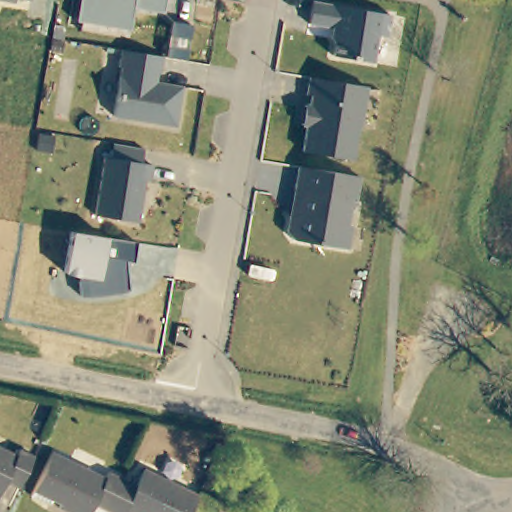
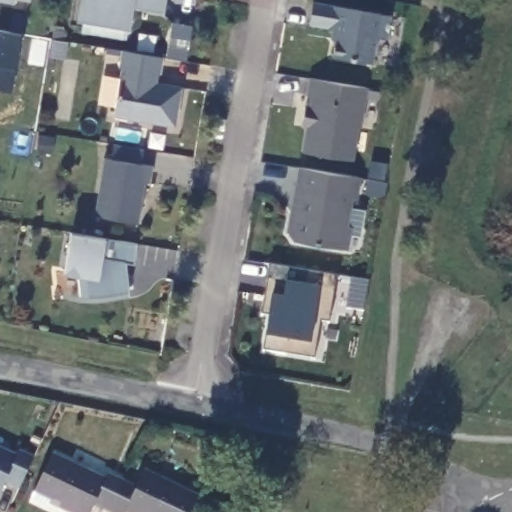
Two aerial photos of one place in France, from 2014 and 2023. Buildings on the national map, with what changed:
unchanged [(166,0),(164,14),(132,8),(129,31),(76,23),(81,0),(166,0)]
unchanged [(392,36),(381,35),(377,61),(337,55),(340,41),(336,36),(338,27),(314,23),(318,1),(396,14),(392,36)]
new [(10,93),(0,90),(0,30),(21,34),(16,69),(10,93)]
unchanged [(144,48),(170,53),(167,70),(161,69),(160,78),(189,83),(182,123),(120,113),(130,64),(127,63),(130,46),(144,48)]
unchanged [(365,125),(362,124),(356,158),(307,149),(312,124),(307,123),(310,103),(315,104),(317,93),(312,92),(315,76),(353,81),(372,85),(365,125)]
unchanged [(152,177),(145,217),(102,210),(111,154),(119,155),(121,140),(150,145),(148,159),(160,161),(157,177),(152,177)]
unchanged [(360,196),(356,195),(350,221),(355,222),(351,243),(297,234),(291,228),(294,213),(301,209),(305,187),(299,186),(303,165),(364,175),(360,196)]
unchanged [(72,231),(108,238),(137,243),(134,262),(124,260),(127,291),(115,294),(100,297),(80,296),(76,276),(64,273),(72,231)]
new [(328,324),(320,322),(312,358),(260,350),(262,335),(265,316),(260,314),(268,266),(335,276),(328,324)]
unchanged [(16,448),(30,454),(15,486),(3,481),(0,486),(0,446),(14,452),(16,448)]
unchanged [(92,507),(90,512),(60,512),(59,512),(60,508),(50,504),(47,508),(31,501),(52,456),(104,480),(108,471),(122,478),(107,512),(103,512),(92,507)]
unchanged [(136,484),(144,468),(198,491),(188,512),(107,512),(122,478),(136,484)]

